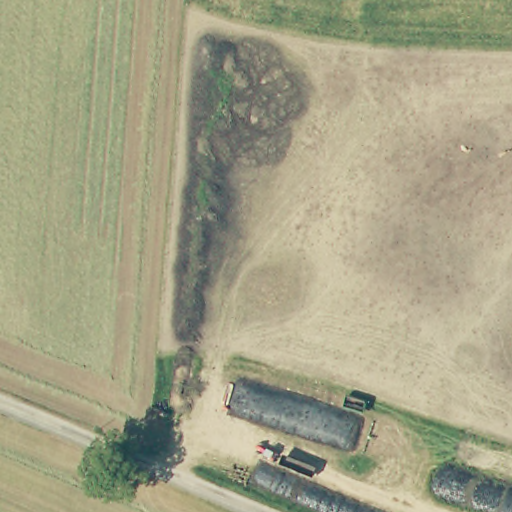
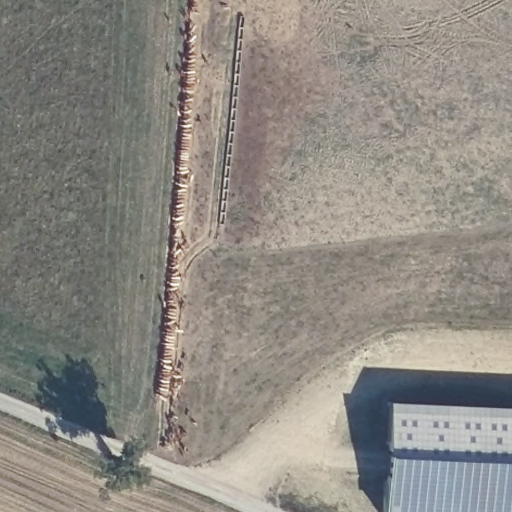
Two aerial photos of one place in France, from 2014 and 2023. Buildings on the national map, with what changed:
new [(385,405),(512,410),(512,512),(382,512),(385,405)]

